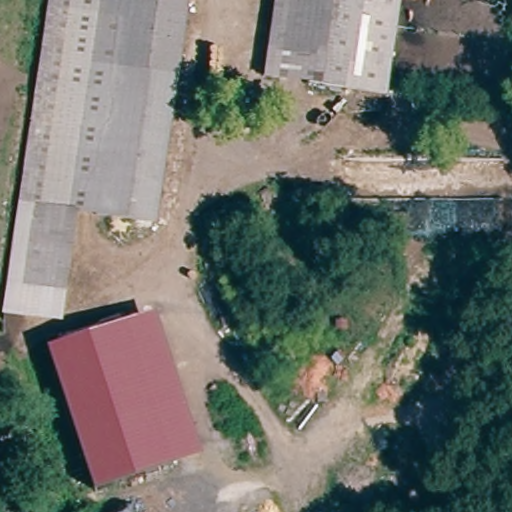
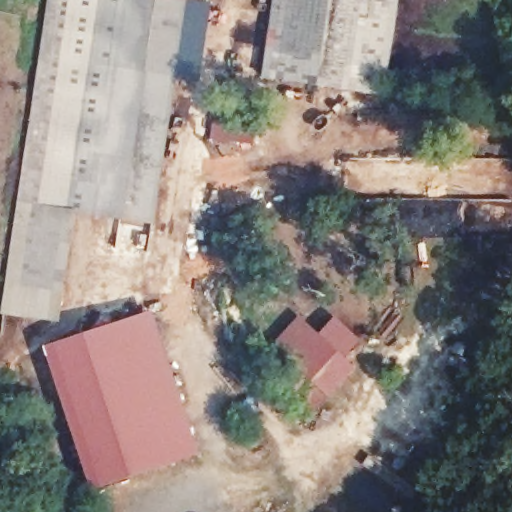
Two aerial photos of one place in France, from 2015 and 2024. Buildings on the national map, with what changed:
unchanged [(78,215),(62,322),(2,314),(48,0),(190,0),(156,226),(78,215)]
unchanged [(382,94),(254,78),(266,0),(281,0),(393,0),(397,0),(382,94)]
unchanged [(95,491),(47,349),(156,309),(204,454),(95,491)]
new [(312,325),(327,309),(362,339),(347,356),(357,367),(315,414),(260,359),(302,316),(312,325)]

